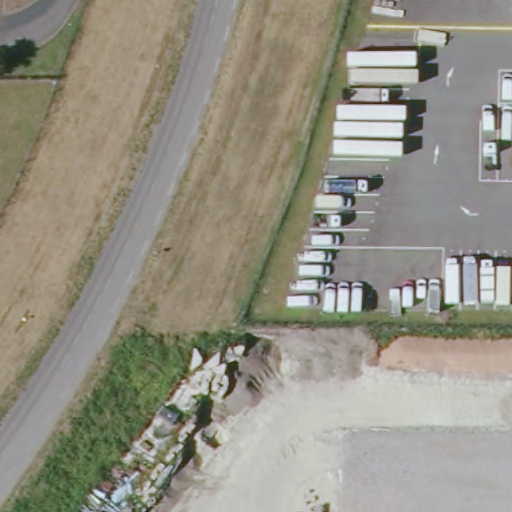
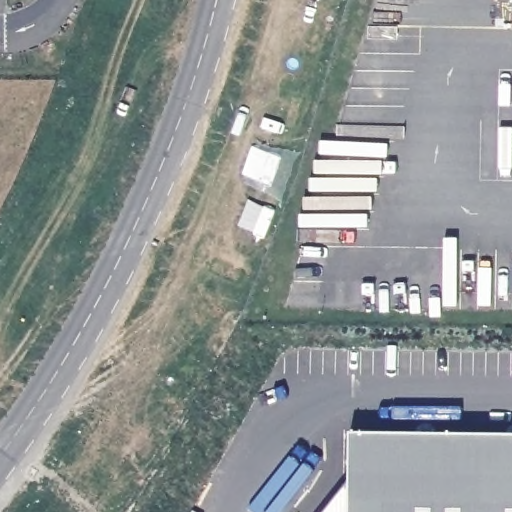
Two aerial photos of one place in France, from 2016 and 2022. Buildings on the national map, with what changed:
new [(351,432),(512,434),(512,512),(324,512),(350,479),(351,432)]

